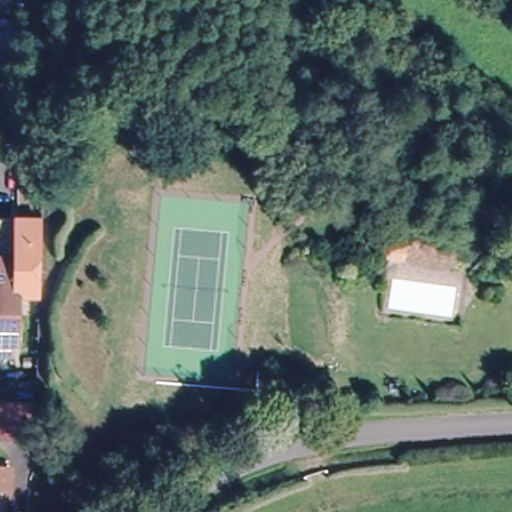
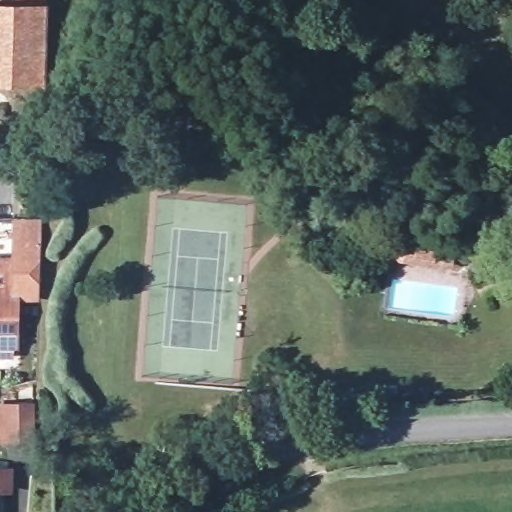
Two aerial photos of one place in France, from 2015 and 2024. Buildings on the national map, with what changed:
new [(46,88),(0,85),(0,0),(48,0),(48,3),(46,88)]
demolished [(0,73),(0,21),(21,22),(21,75),(0,73)]
unchanged [(487,224),(464,217),(474,184),(495,189),(487,224)]
unchanged [(38,214),(38,216),(37,238),(37,291),(16,291),(16,340),(12,340),(12,354),(0,354),(0,214),(17,214),(38,214)]
unchanged [(3,439),(0,439),(0,404),(4,404),(30,405),(29,439),(3,439)]
unchanged [(0,483),(0,472),(1,472),(0,483)]

